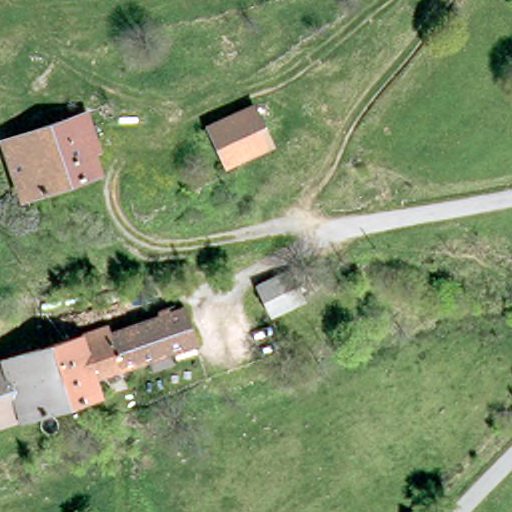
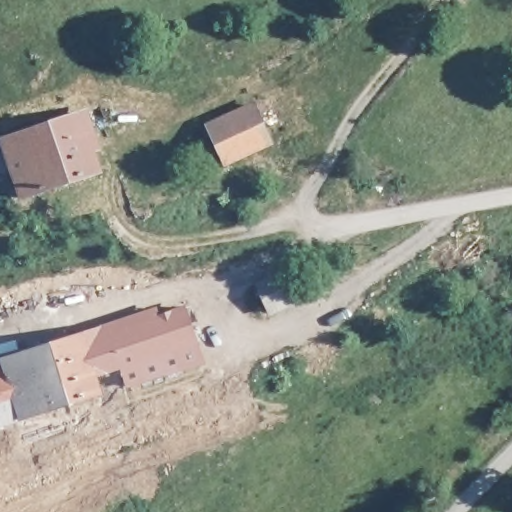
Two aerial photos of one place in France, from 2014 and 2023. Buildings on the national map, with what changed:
unchanged [(209,48),(222,43),(230,59),(217,65),(209,48)]
unchanged [(100,105),(108,103),(111,113),(103,115),(100,105)]
unchanged [(247,160),(219,173),(206,149),(214,144),(210,134),(220,130),(236,124),(262,113),(279,146),(247,160)]
unchanged [(4,141),(79,114),(100,171),(24,199),(4,141)]
unchanged [(288,317),(272,323),(261,295),(296,280),(301,293),(312,289),(317,304),(288,317)]
unchanged [(114,342),(162,325),(159,317),(172,313),(175,320),(191,315),(202,350),(175,359),(179,370),(156,379),(151,368),(95,387),(101,403),(26,426),(9,365),(112,335),(114,342)]
unchanged [(9,365),(26,426),(0,434),(0,368),(9,365)]

